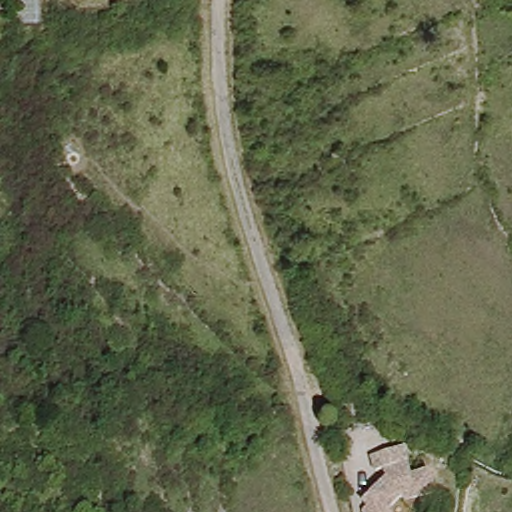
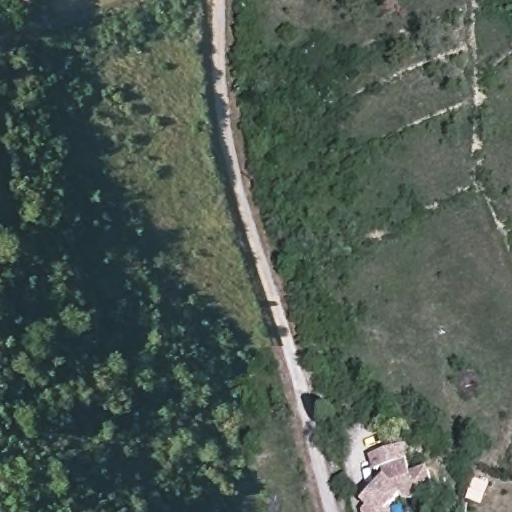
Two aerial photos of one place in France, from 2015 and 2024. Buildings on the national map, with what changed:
unchanged [(30,50),(15,54),(12,41),(27,37),(30,50)]
unchanged [(377,491),(388,470),(385,455),(410,451),(413,470),(432,466),(440,493),(396,501),(398,512),(382,512),(377,491)]

